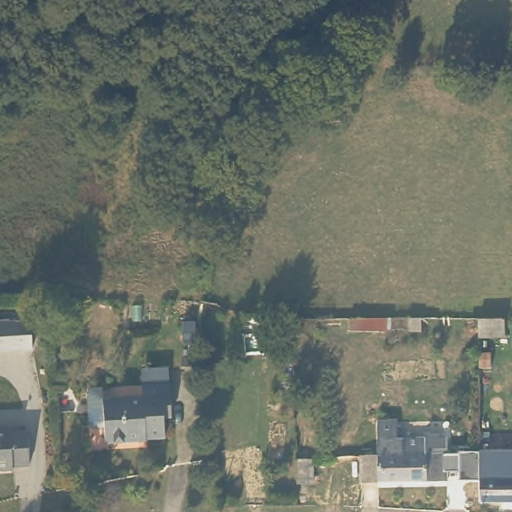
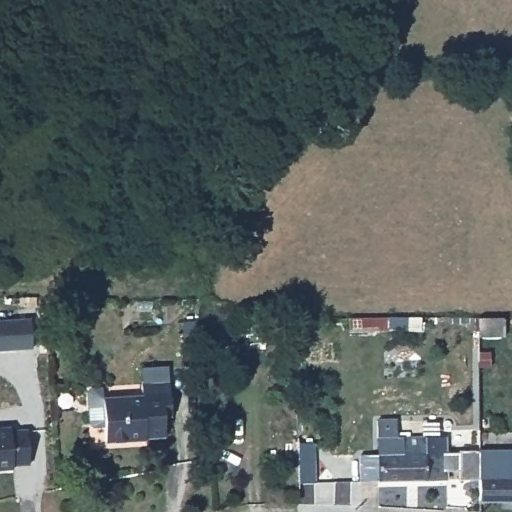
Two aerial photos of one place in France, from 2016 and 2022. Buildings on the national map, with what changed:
unchanged [(503,318),(504,337),(478,337),(478,318),(503,318)]
unchanged [(32,320),(34,350),(0,352),(0,321),(32,320)]
unchanged [(142,390),(141,377),(168,375),(172,407),(163,408),(167,427),(146,428),(148,447),(105,452),(101,395),(142,390)]
unchanged [(378,455),(376,420),(397,421),(397,433),(412,433),(411,438),(446,438),(446,452),(447,453),(447,481),(362,482),(360,455),(378,455)]
unchanged [(9,422),(10,427),(26,426),(31,461),(11,462),(10,467),(0,467),(0,422),(9,422)]
unchanged [(500,496),(480,496),(480,476),(461,475),(461,448),(480,448),(498,448),(497,463),(510,463),(510,472),(512,472),(512,503),(501,502),(500,496)]
unchanged [(293,457),(307,456),(307,481),(294,480),(293,457)]

